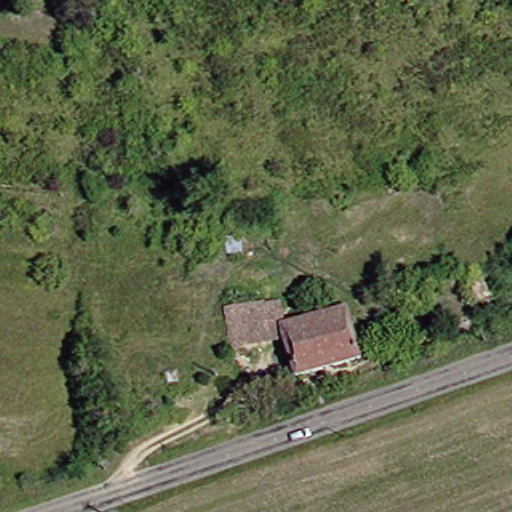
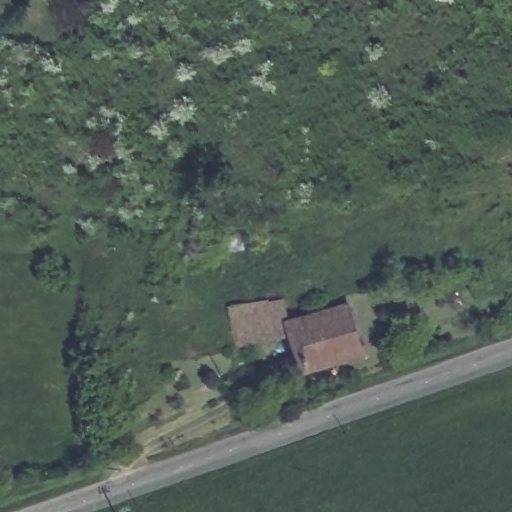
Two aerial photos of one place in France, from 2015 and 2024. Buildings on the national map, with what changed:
unchanged [(232,342),(225,303),(280,295),(285,315),(280,316),(285,332),(232,342)]
unchanged [(296,370),(285,332),(280,316),(285,315),(347,297),(362,351),(296,370)]

